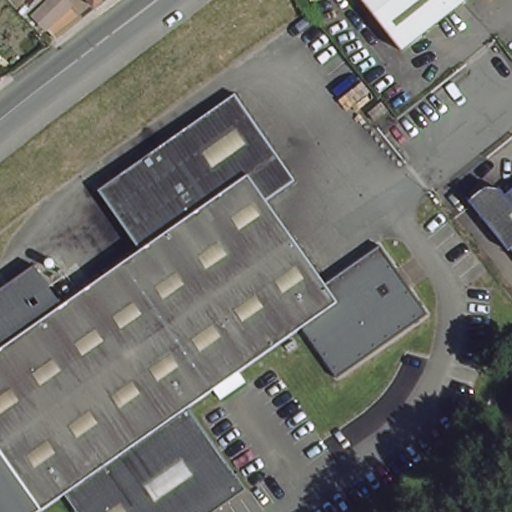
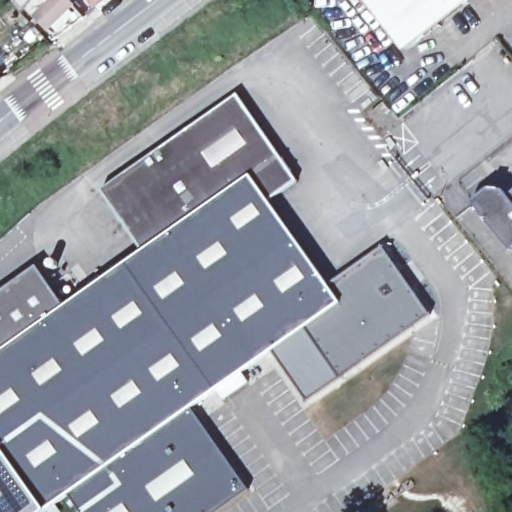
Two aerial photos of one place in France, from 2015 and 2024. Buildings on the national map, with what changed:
unchanged [(53,37),(35,20),(30,25),(25,20),(30,15),(45,0),(63,0),(79,17),(53,37)]
unchanged [(92,0),(107,0),(98,7),(92,0)]
unchanged [(366,0),(471,0),(406,51),(366,0)]
unchanged [(44,512),(0,512),(0,291),(36,265),(65,306),(143,251),(99,190),(236,94),(297,180),(268,200),(328,285),(383,245),(431,315),(339,378),(304,327),(271,351),(191,407),(248,489),(215,512),(82,512),(69,494),(44,512)]
unchanged [(391,110),(386,114),(384,113),(376,120),(371,114),(384,102),(391,110)]
unchanged [(472,202),(489,189),(504,190),(509,195),(512,193),(512,251),(472,202)]
new [(304,327),(339,378),(304,404),(271,351),(304,327)]

